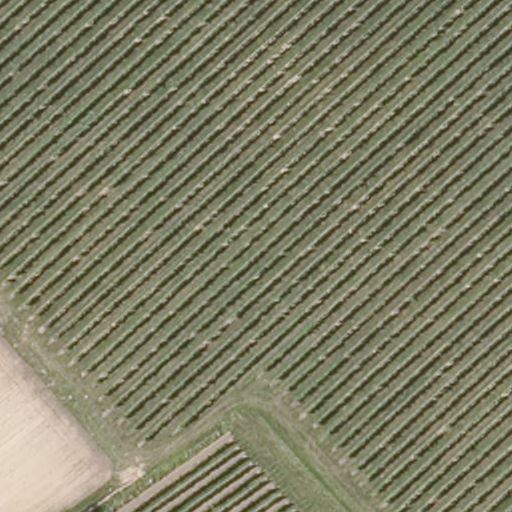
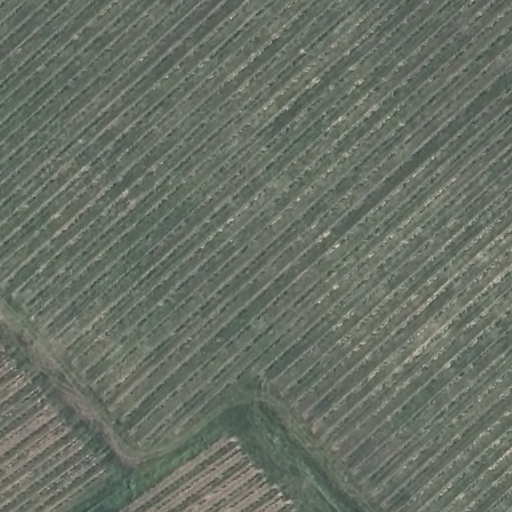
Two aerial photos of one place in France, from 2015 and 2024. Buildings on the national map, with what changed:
[]

